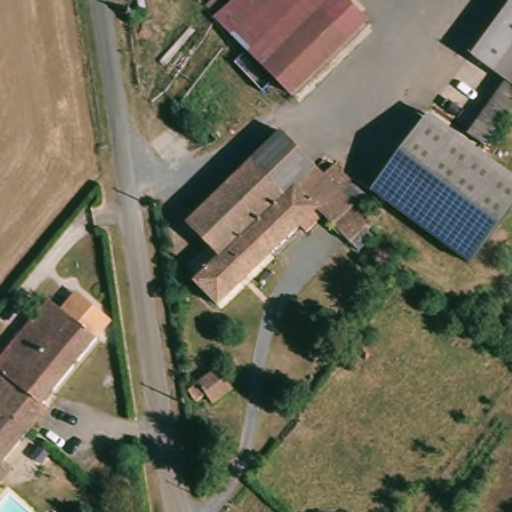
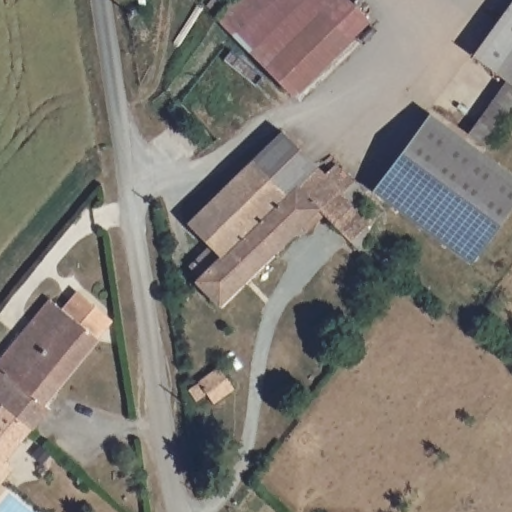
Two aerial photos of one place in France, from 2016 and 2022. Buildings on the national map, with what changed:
unchanged [(293,99),(211,16),(226,0),(349,0),(371,23),(293,99)]
unchanged [(509,0),(512,0),(512,20),(497,40),(508,48),(492,72),(469,56),(509,0)]
unchanged [(463,137),(504,81),(492,72),(508,48),(497,40),(512,20),(512,119),(487,154),(463,137)]
unchanged [(373,188),(430,114),(512,174),(512,208),(471,264),(373,188)]
unchanged [(360,253),(352,245),(318,212),(220,308),(194,282),(199,277),(190,268),(211,245),(188,222),(281,133),(322,175),(333,164),(362,194),(351,205),(366,221),(371,216),(377,221),(367,231),(375,238),(360,253)]
unchanged [(75,364),(48,342),(42,349),(19,330),(47,295),(62,306),(69,297),(77,287),(84,292),(112,317),(75,364)]
unchanged [(42,349),(48,342),(75,364),(57,386),(44,402),(47,406),(31,426),(0,400),(0,353),(19,330),(42,349)]
unchanged [(234,389),(212,404),(207,396),(197,403),(189,391),(219,369),(234,389)]
unchanged [(3,460),(11,465),(0,478),(0,400),(31,426),(3,460)]

